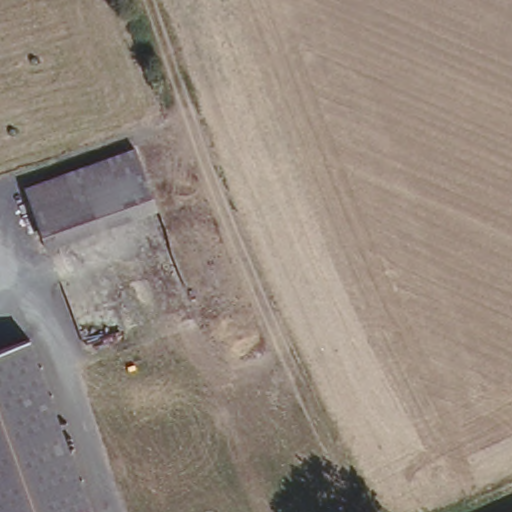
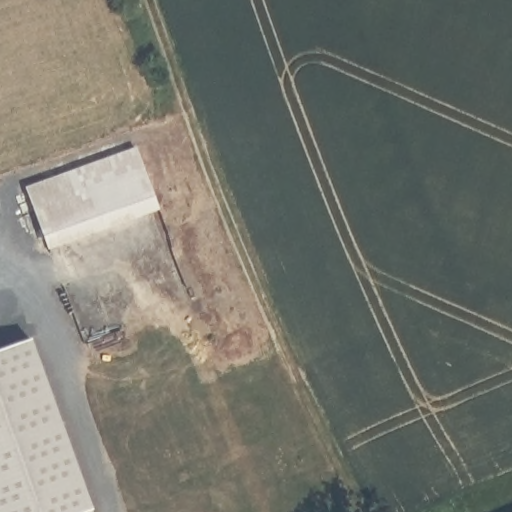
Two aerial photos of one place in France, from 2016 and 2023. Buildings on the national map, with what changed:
unchanged [(148,192),(43,235),(27,191),(131,150),(148,192)]
unchanged [(81,480),(1,512),(0,512),(0,345),(23,336),(81,480)]
unchanged [(90,512),(1,512),(81,480),(93,511),(90,512)]
unchanged [(90,512),(93,511),(94,512),(90,512)]

